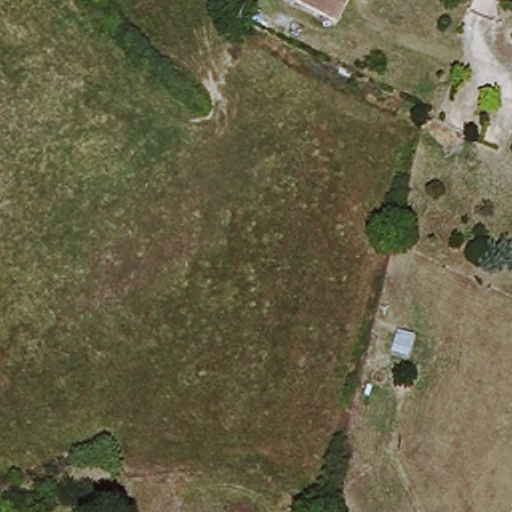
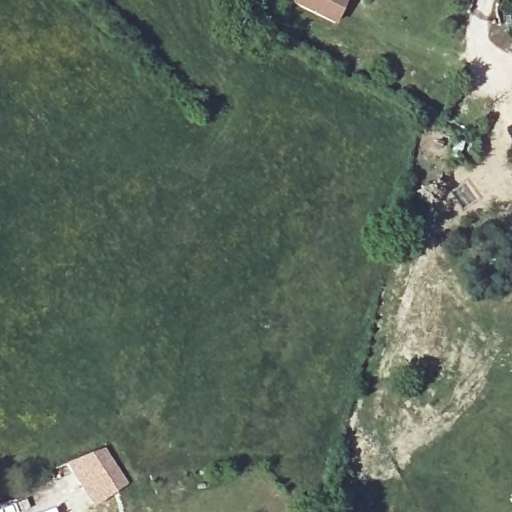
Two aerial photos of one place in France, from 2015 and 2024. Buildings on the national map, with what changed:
unchanged [(337,26),(298,7),(301,0),(348,0),(337,26)]
new [(103,450),(128,483),(96,507),(67,466),(103,450)]

